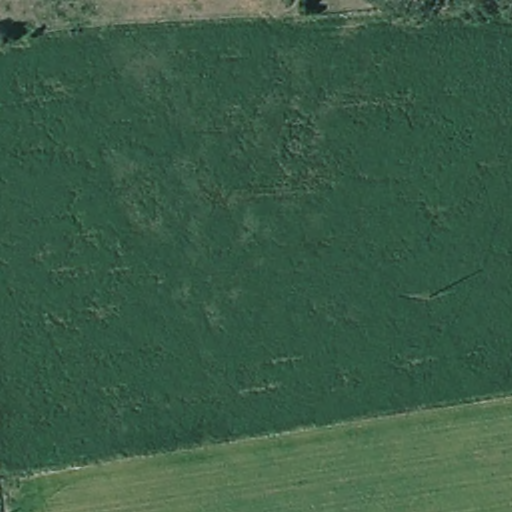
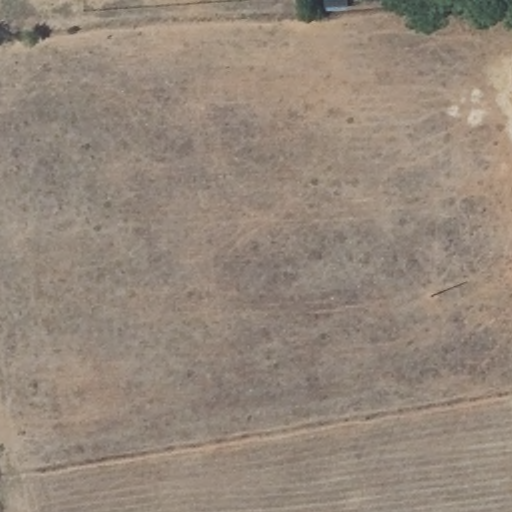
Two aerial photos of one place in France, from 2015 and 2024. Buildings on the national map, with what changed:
[]

